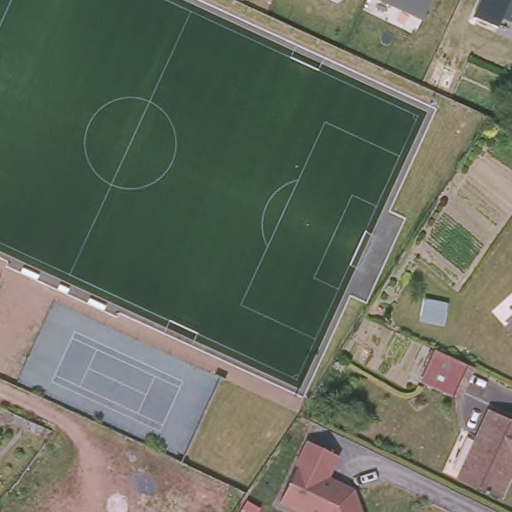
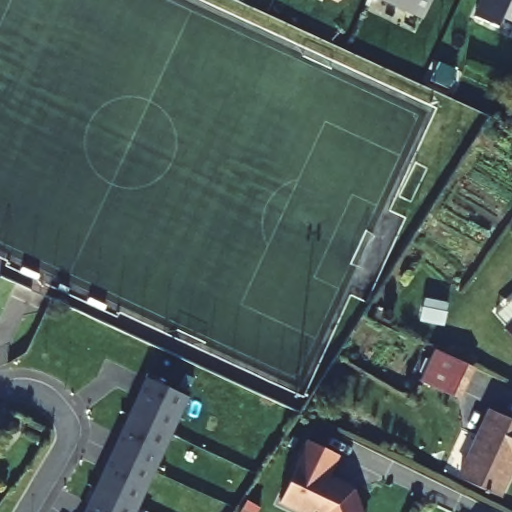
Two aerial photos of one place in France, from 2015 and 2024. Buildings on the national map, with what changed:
unchanged [(426,0),(417,20),(371,0),(426,0)]
unchanged [(494,28),(467,16),(475,0),(512,0),(512,22),(501,16),(494,28)]
unchanged [(512,319),(512,330),(506,324),(512,319)]
unchanged [(473,367),(459,399),(422,383),(437,351),(473,367)]
new [(179,401),(133,512),(89,512),(146,384),(179,401)]
unchanged [(512,480),(504,496),(465,478),(484,438),(497,411),(512,417),(512,480)]
unchanged [(279,504),(309,439),(343,454),(334,478),(356,489),(365,512),(296,512),(279,504)]
demolished [(49,466),(37,482),(25,475),(37,457),(49,466)]

